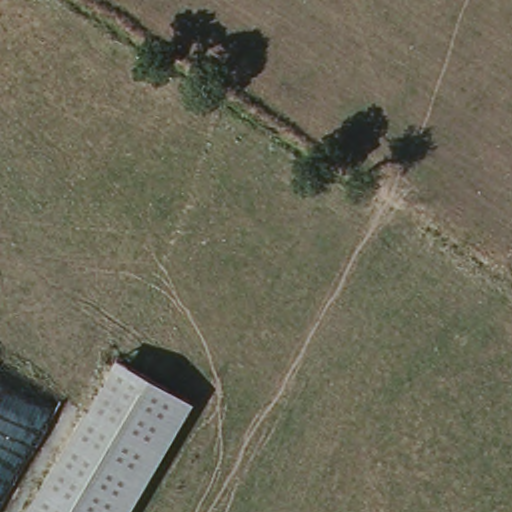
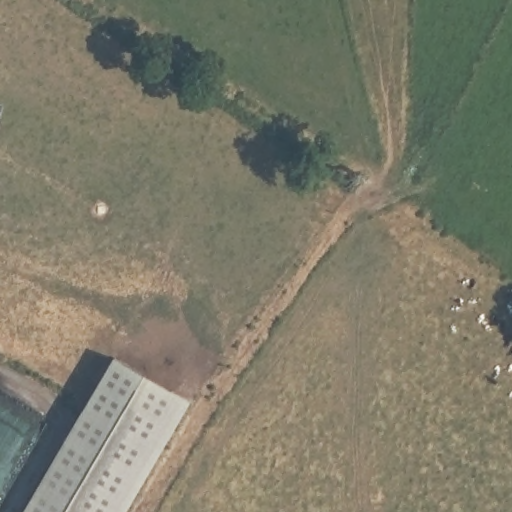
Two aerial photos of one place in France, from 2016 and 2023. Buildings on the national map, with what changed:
unchanged [(190,402),(125,512),(22,512),(114,355),(190,402)]

